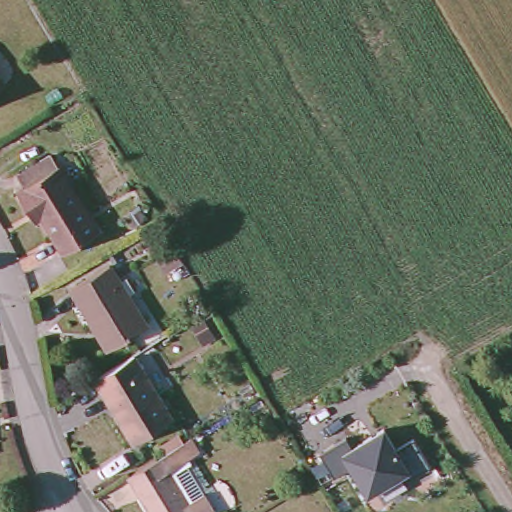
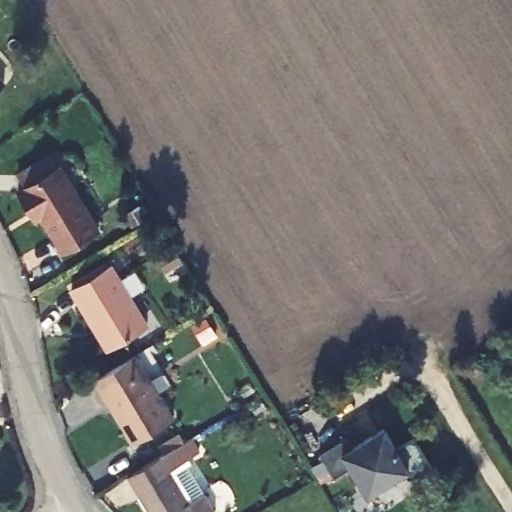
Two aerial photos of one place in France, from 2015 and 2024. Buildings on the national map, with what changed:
unchanged [(0,92),(0,74),(9,84),(0,92)]
unchanged [(30,210),(17,190),(59,166),(97,230),(63,251),(42,215),(35,219),(30,210)]
unchanged [(71,287),(109,264),(147,326),(109,349),(71,287)]
unchanged [(134,443),(117,416),(119,414),(105,391),(102,392),(95,379),(134,354),(158,394),(172,419),(134,443)]
unchanged [(412,477),(410,469),(367,496),(351,467),(336,476),(322,450),(347,436),(352,445),(385,424),(399,446),(415,436),(432,464),(412,477)]
unchanged [(189,507),(205,498),(213,512),(147,512),(128,481),(165,458),(161,451),(177,441),(182,448),(187,444),(190,443),(199,457),(195,459),(169,474),(189,507)]

